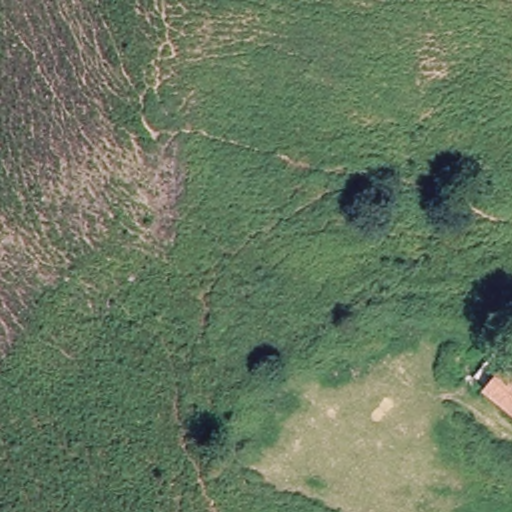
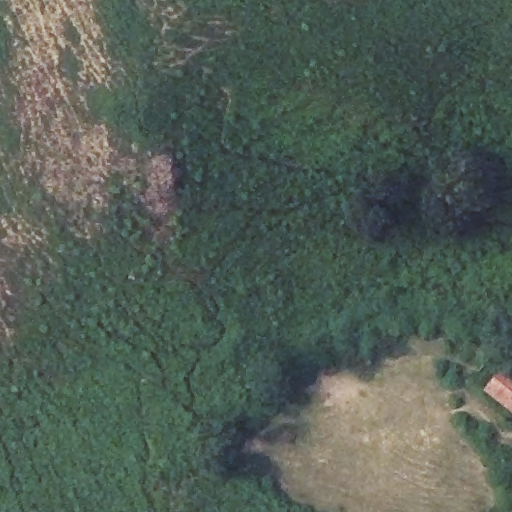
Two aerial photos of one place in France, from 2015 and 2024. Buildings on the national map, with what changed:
unchanged [(503,370),(512,376),(512,407),(488,392),(503,370)]

